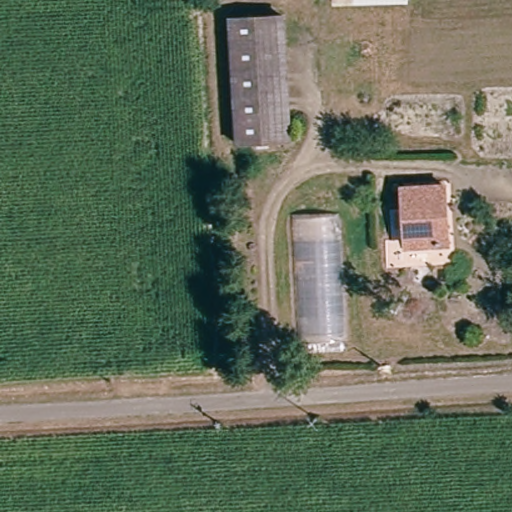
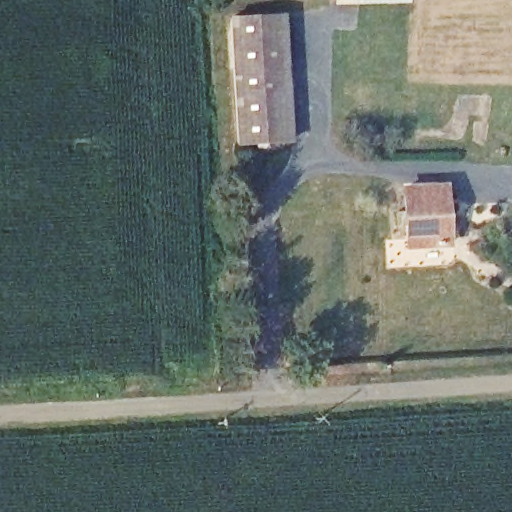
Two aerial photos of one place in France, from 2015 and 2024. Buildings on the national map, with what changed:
unchanged [(333,2),(333,0),(408,0),(408,1),(333,2)]
unchanged [(282,16),(290,141),(237,144),(231,44),(229,19),(282,16)]
unchanged [(446,187),(449,244),(407,247),(404,189),(446,187)]
demolished [(343,206),(352,352),(305,354),(297,208),(343,206)]

